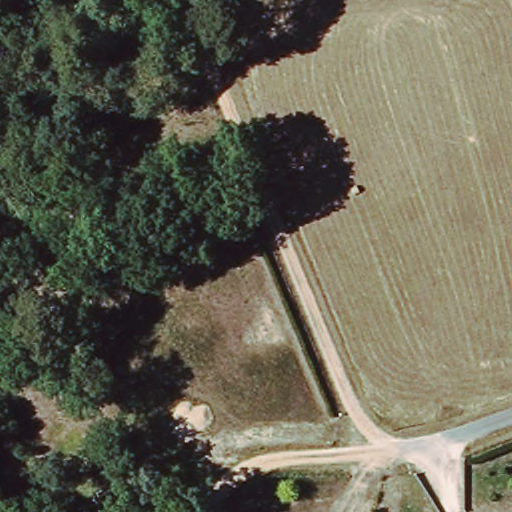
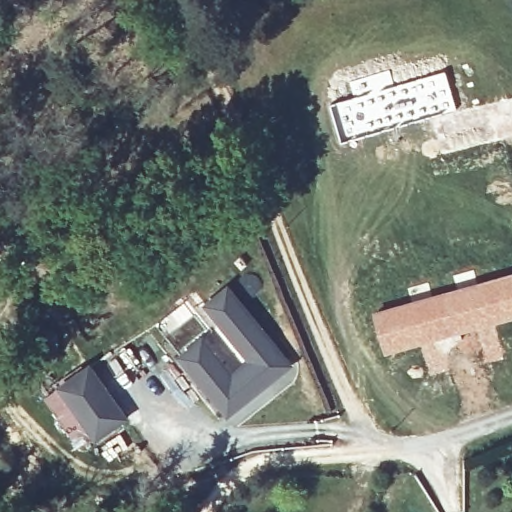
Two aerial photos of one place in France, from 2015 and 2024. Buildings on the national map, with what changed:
new [(443,70),(455,109),(345,139),(334,103),(443,70)]
new [(474,331),(382,355),(368,310),(411,298),(407,287),(427,280),(431,294),(456,286),(452,274),(472,268),(476,281),(512,271),(512,319),(495,324),(505,359),(483,364),(474,331)]
new [(232,372),(249,360),(204,303),(229,284),(293,364),(227,417),(179,355),(204,336),(232,372)]
new [(86,362),(121,414),(91,435),(56,383),(86,362)]

